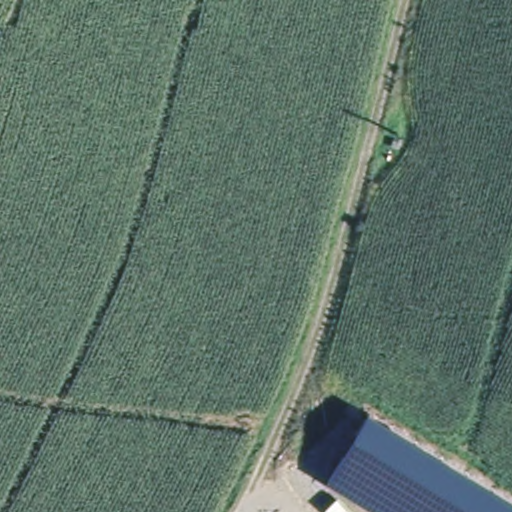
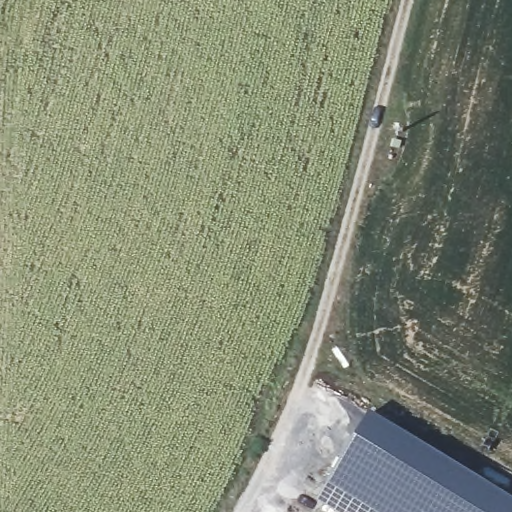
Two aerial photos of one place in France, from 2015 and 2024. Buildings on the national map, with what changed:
unchanged [(512,512),(373,512),(325,483),(367,411),(512,501),(512,512)]

